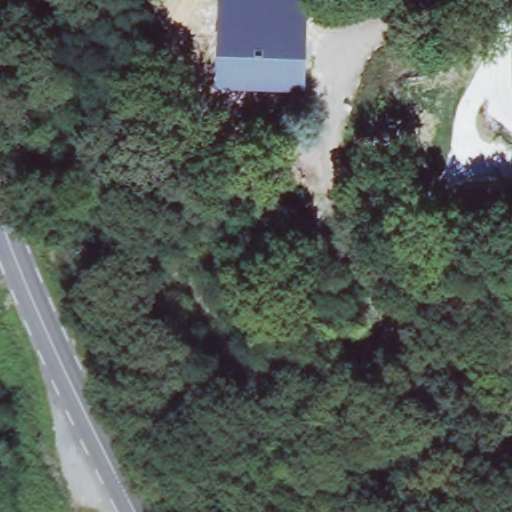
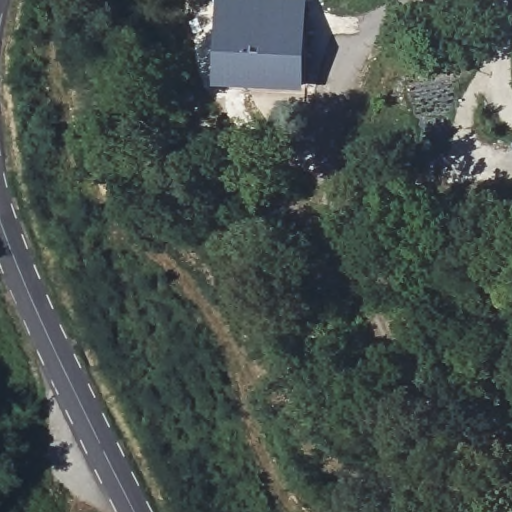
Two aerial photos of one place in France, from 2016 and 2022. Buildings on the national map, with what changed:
unchanged [(290,18),(291,81),(208,80),(209,18),(290,18)]

